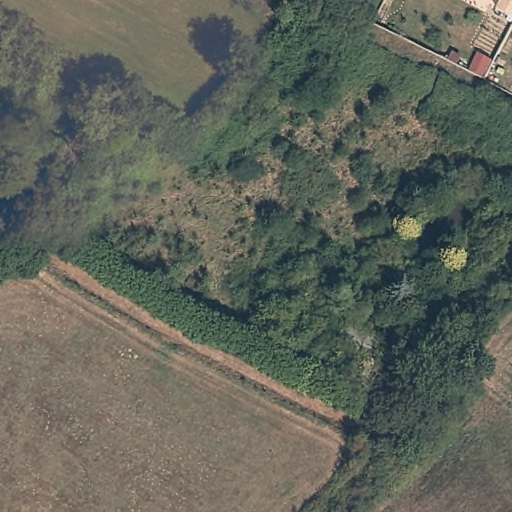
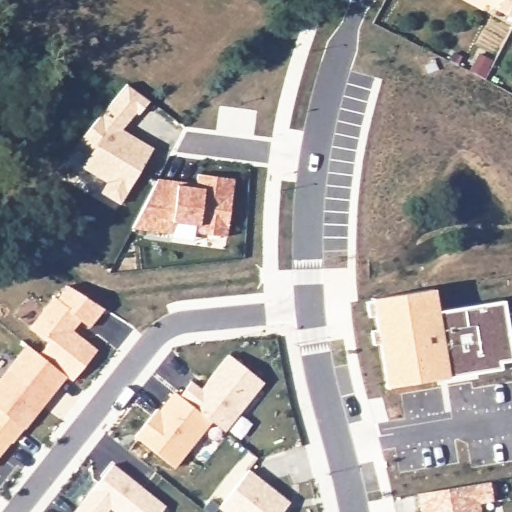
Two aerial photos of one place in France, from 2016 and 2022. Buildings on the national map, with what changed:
unchanged [(502,0),(503,0),(512,0),(512,5),(502,0)]
new [(104,183),(79,168),(89,154),(78,140),(126,85),(149,101),(137,117),(134,115),(121,130),(153,152),(117,205),(97,193),(104,183)]
new [(157,179),(176,180),(175,185),(197,186),(197,175),(233,179),(229,237),(196,234),(199,226),(170,222),(169,234),(129,230),(157,179)]
new [(101,308),(86,326),(74,317),(67,327),(94,351),(70,380),(66,378),(39,355),(46,345),(26,330),(52,296),(54,297),(65,285),(101,308)]
new [(434,289),(438,311),(504,300),(512,351),(512,361),(498,362),(500,370),(385,387),(371,299),(434,289)]
new [(39,355),(66,378),(0,457),(0,377),(25,344),(39,355)]
new [(158,408),(159,410),(174,391),(178,396),(192,381),(200,389),(228,355),(265,382),(226,432),(211,423),(174,469),(132,438),(158,408)]
new [(164,506),(160,512),(112,512),(108,510),(106,512),(73,512),(111,465),(164,506)]
new [(249,469),(290,502),(283,512),(223,512),(218,507),(249,469)]
new [(492,501),(479,503),(480,512),(425,512),(424,511),(421,511),(418,494),(489,482),(492,501)]

